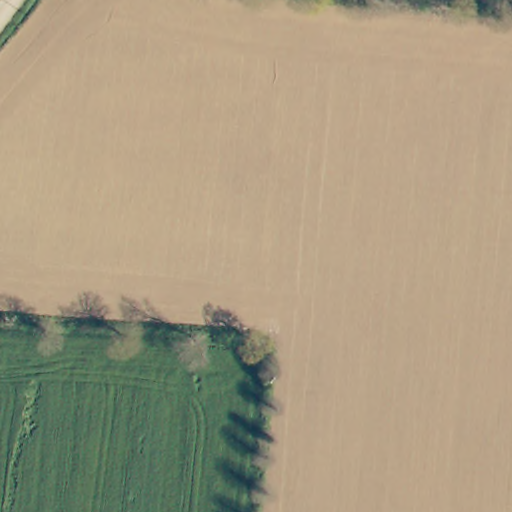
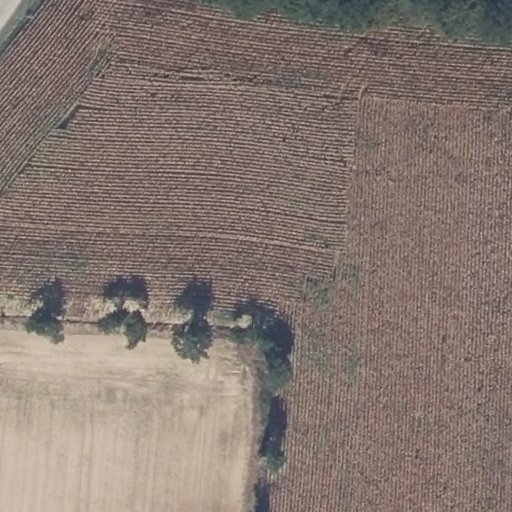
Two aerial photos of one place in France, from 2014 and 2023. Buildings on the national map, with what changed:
[]

